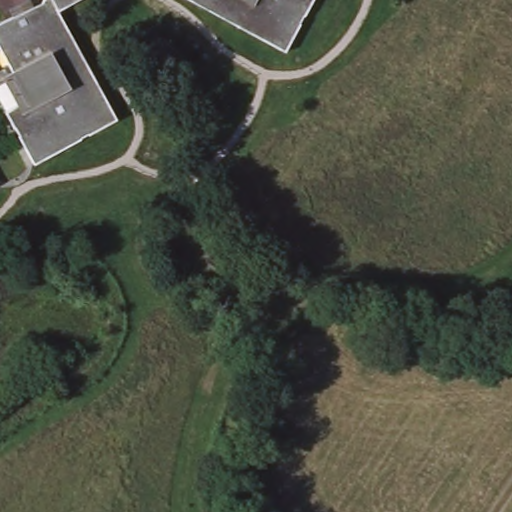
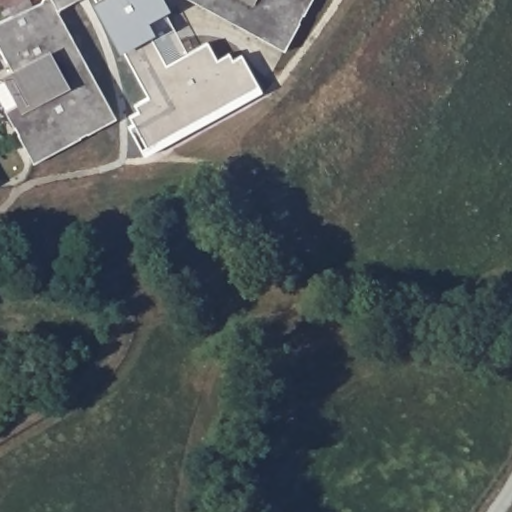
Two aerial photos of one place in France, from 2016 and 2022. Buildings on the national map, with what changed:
unchanged [(76,0),(59,9),(119,119),(36,162),(9,110),(20,103),(5,79),(14,73),(1,47),(0,48),(0,21),(42,0),(76,0)]
new [(148,22),(154,34),(150,36),(166,66),(207,42),(218,61),(229,53),(233,60),(242,55),(262,93),(144,156),(128,128),(134,124),(130,116),(139,111),(135,105),(148,98),(124,50),(118,53),(90,3),(95,0),(164,0),(169,9),(148,22)]
unchanged [(189,0),(316,0),(288,54),(189,0)]

